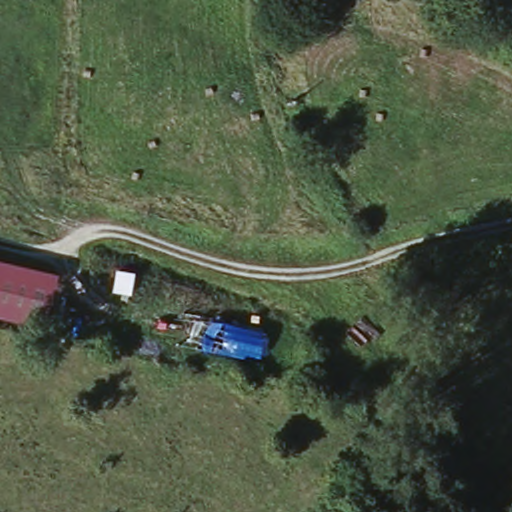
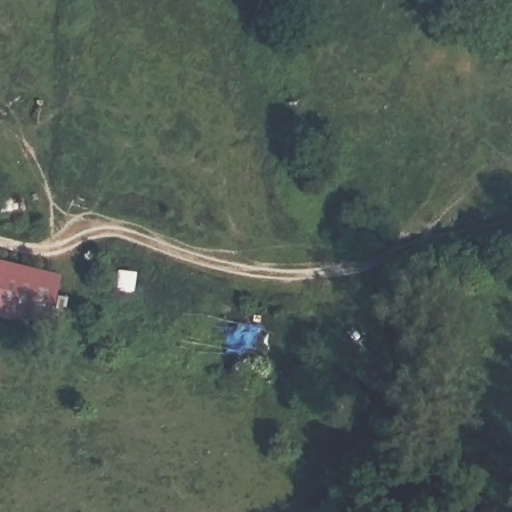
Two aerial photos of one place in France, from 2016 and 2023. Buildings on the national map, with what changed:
unchanged [(0,318),(0,261),(59,275),(46,329),(0,318)]

